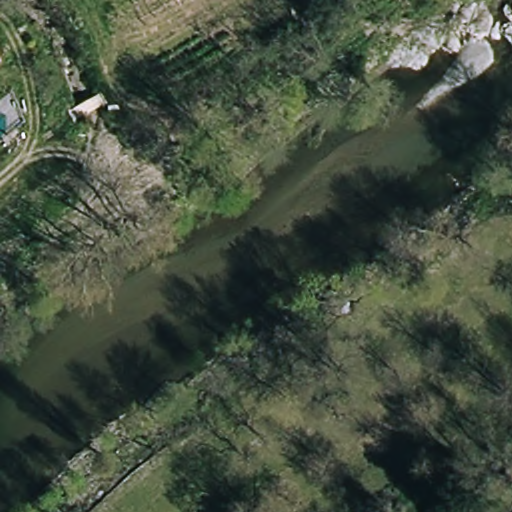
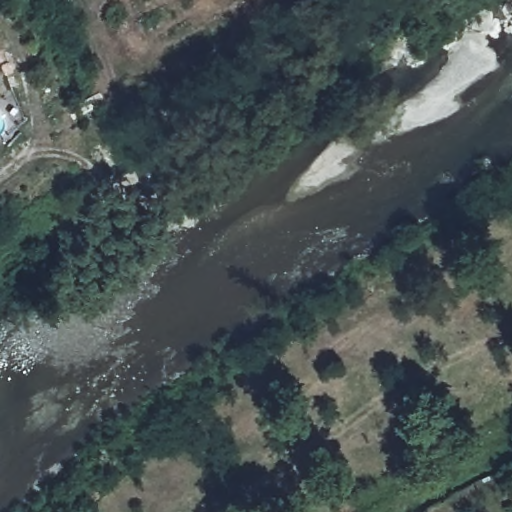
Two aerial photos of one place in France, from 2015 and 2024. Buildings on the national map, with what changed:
unchanged [(0,62),(0,55),(2,61),(0,62)]

